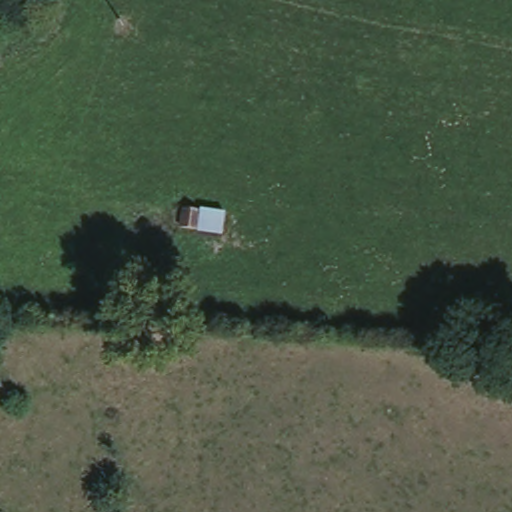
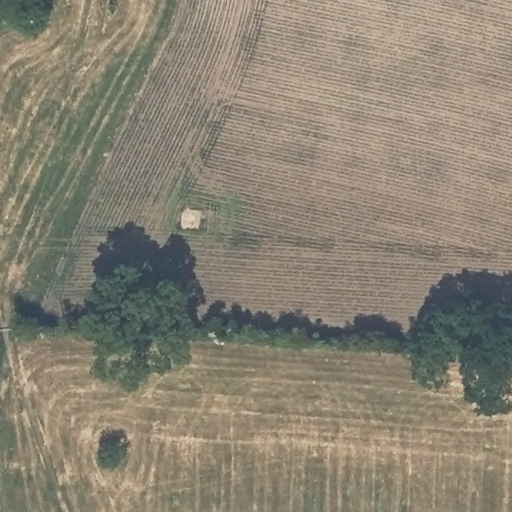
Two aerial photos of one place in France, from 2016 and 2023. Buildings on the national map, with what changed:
unchanged [(176,198),(224,204),(222,228),(177,221),(176,198)]

